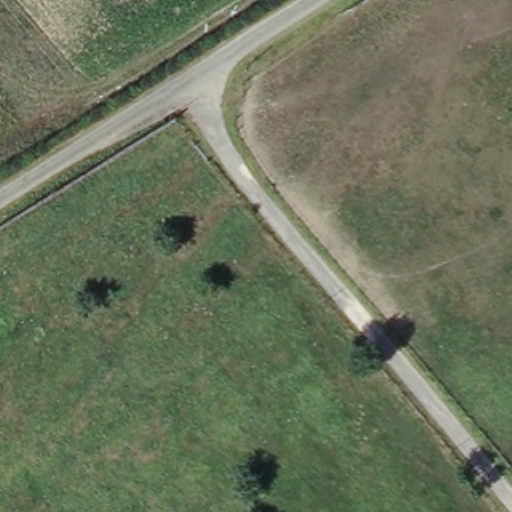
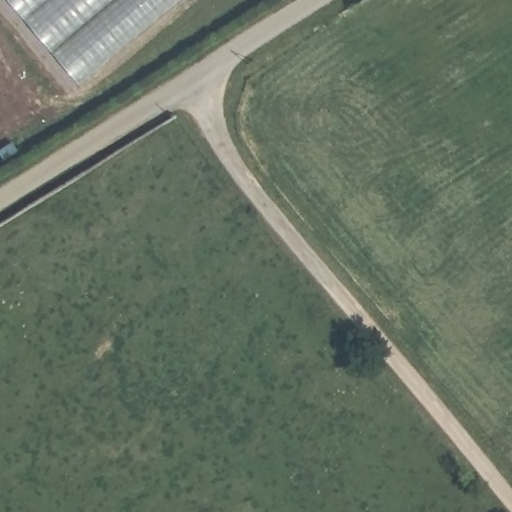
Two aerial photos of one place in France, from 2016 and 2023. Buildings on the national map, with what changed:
new [(81,79),(13,0),(174,0),(81,79)]

